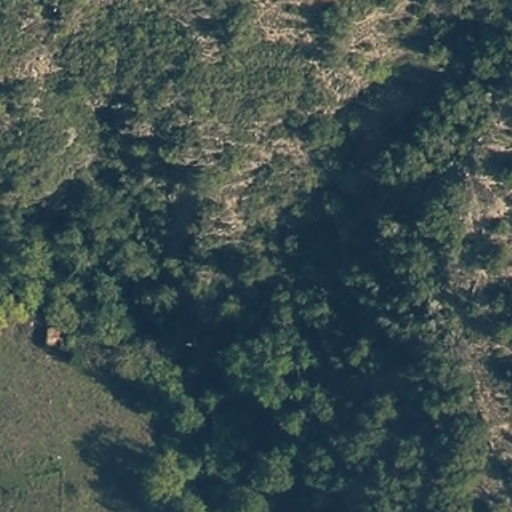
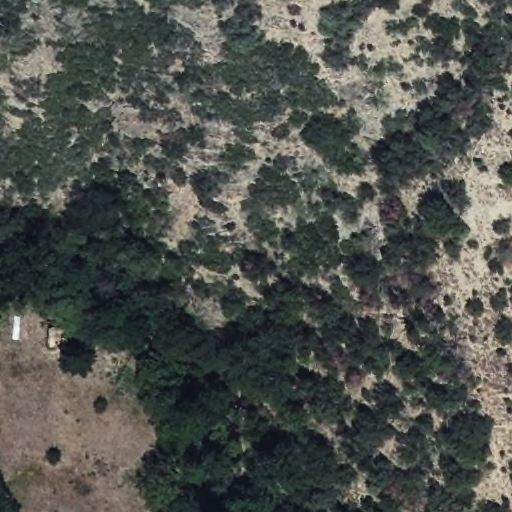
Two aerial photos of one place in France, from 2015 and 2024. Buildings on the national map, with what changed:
unchanged [(78,329),(76,350),(46,351),(49,328),(78,329)]

